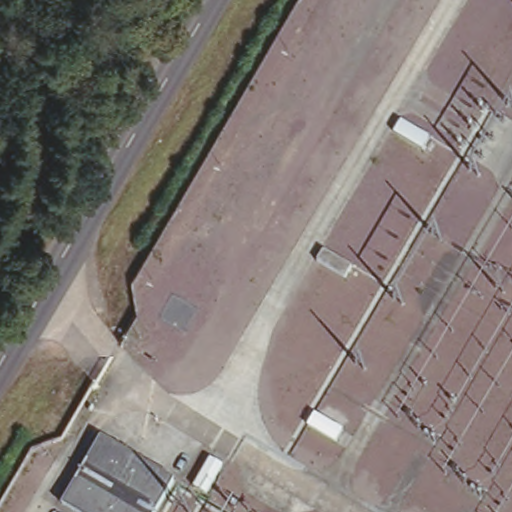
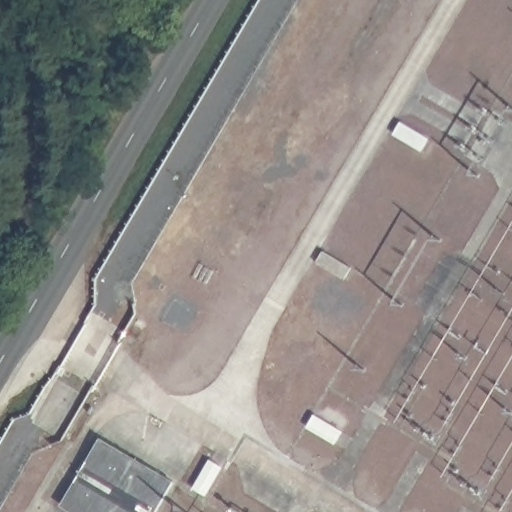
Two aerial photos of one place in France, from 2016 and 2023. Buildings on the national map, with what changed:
unchanged [(80,512),(55,499),(98,429),(175,475),(152,512),(80,512)]

